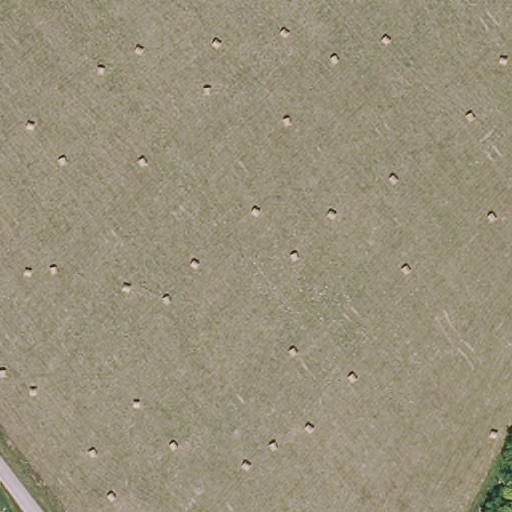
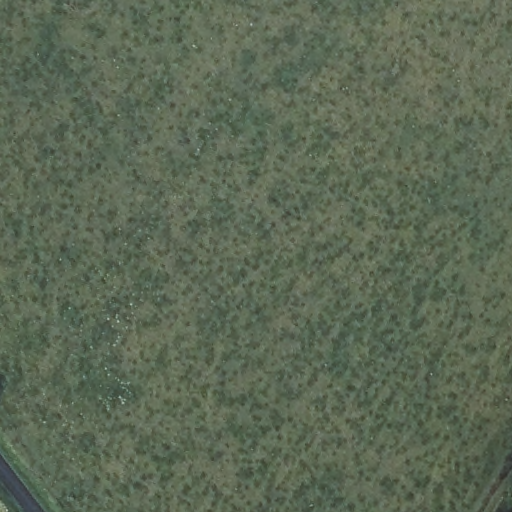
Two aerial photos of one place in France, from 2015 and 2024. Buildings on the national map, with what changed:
[]

